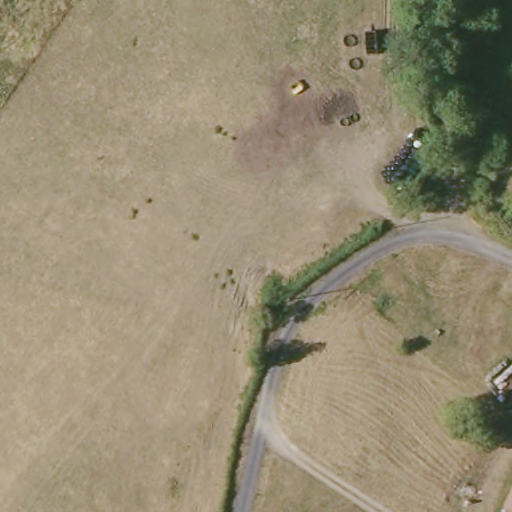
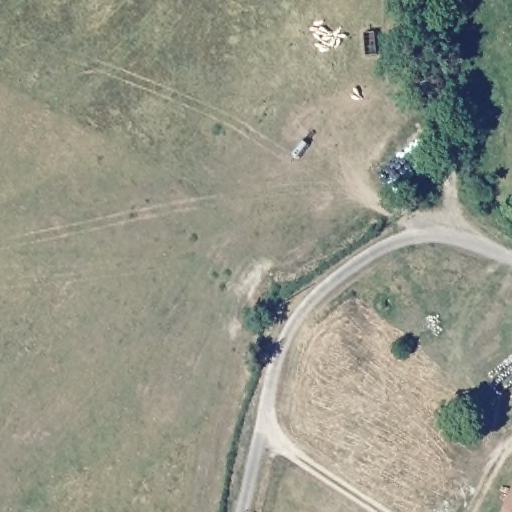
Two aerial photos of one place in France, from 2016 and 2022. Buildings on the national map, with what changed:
unchanged [(507,503),(512,492),(512,505),(507,503)]

